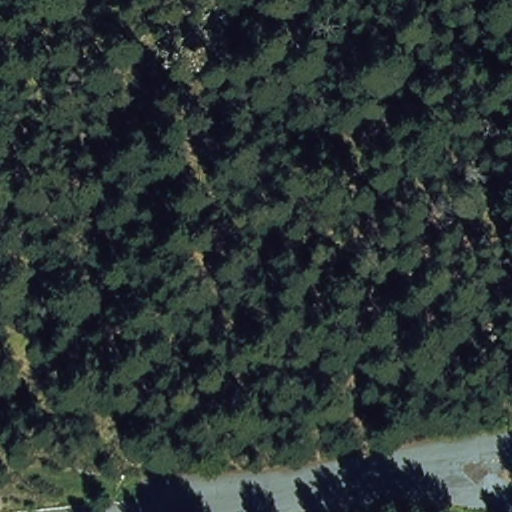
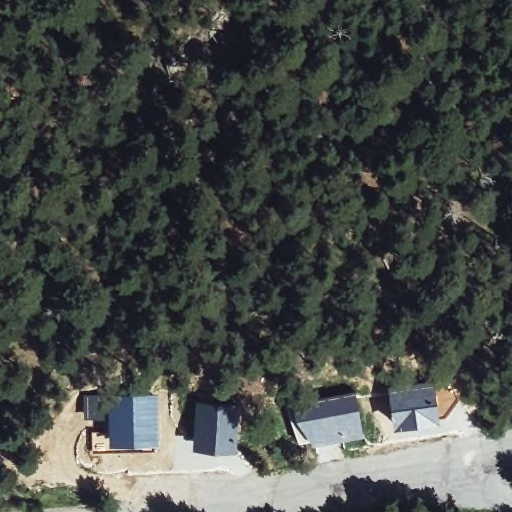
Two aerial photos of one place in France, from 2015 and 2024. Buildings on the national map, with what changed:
new [(434,380),(440,423),(393,429),(387,386),(434,380)]
new [(356,390),(365,435),(298,443),(286,402),(356,390)]
new [(158,392),(160,441),(110,444),(107,417),(86,419),(85,393),(158,392)]
new [(238,405),(236,441),(195,438),(197,402),(238,405)]

